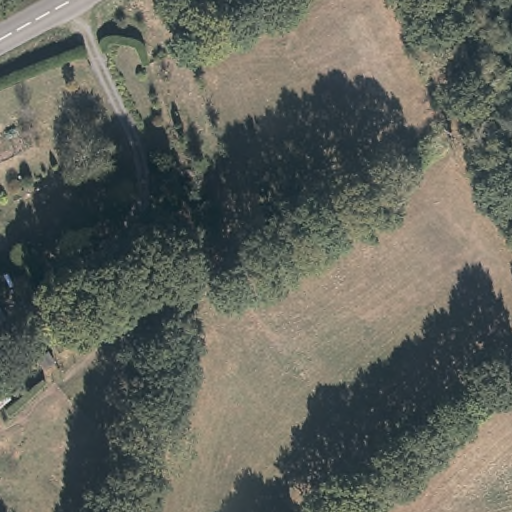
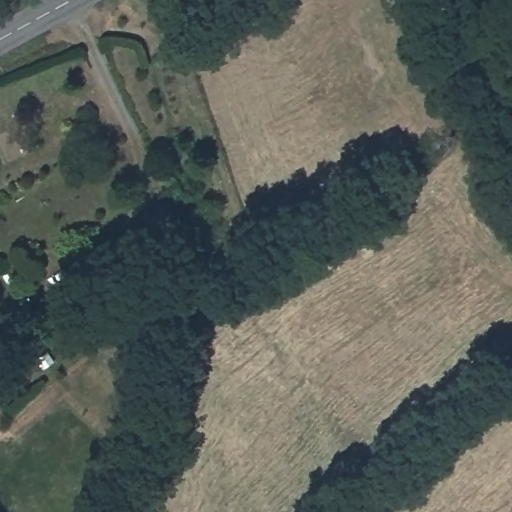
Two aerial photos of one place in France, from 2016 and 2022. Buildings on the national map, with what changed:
unchanged [(0,314),(8,329),(0,334),(0,315),(0,314)]
unchanged [(3,382),(0,384),(0,378),(3,382)]

